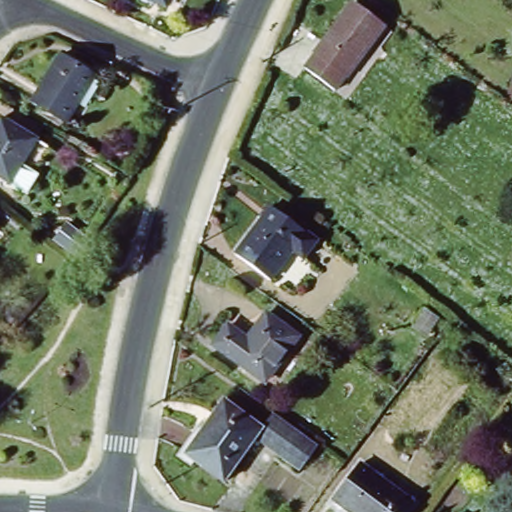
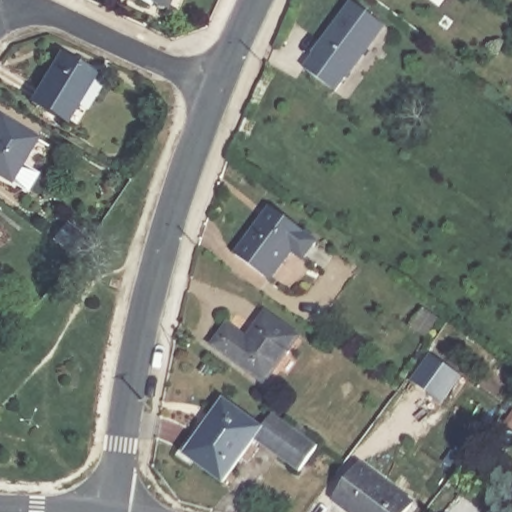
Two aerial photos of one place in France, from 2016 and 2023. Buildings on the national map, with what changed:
unchanged [(152,0),(171,0),(167,7),(152,0)]
unchanged [(357,0),(387,24),(340,87),(337,90),(306,67),(310,64),(357,0)]
unchanged [(61,51),(96,72),(67,119),(32,98),(61,51)]
unchanged [(2,120),(36,144),(10,184),(0,178),(0,124),(2,120)]
unchanged [(272,204),(317,238),(304,256),(293,248),(271,277),(238,251),(272,204)]
unchanged [(235,325),(255,341),(273,315),(303,337),(270,381),(221,344),(235,325)]
new [(432,354),(462,375),(443,402),(413,380),(432,354)]
unchanged [(318,445),(300,469),(255,437),(240,459),(206,435),(215,421),(211,418),(225,399),(263,427),(273,412),(318,445)]
unchanged [(357,461),(411,500),(402,512),(351,512),(331,497),(357,461)]

